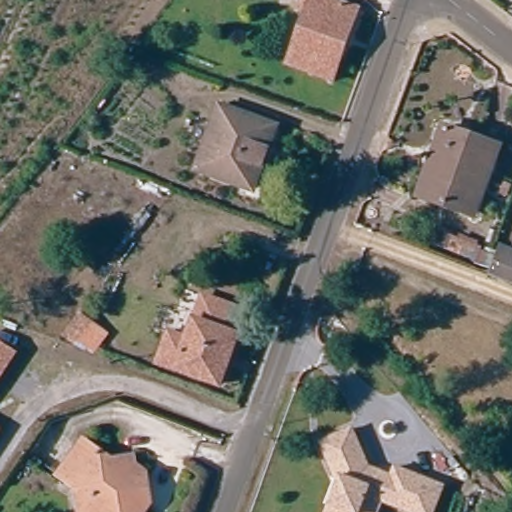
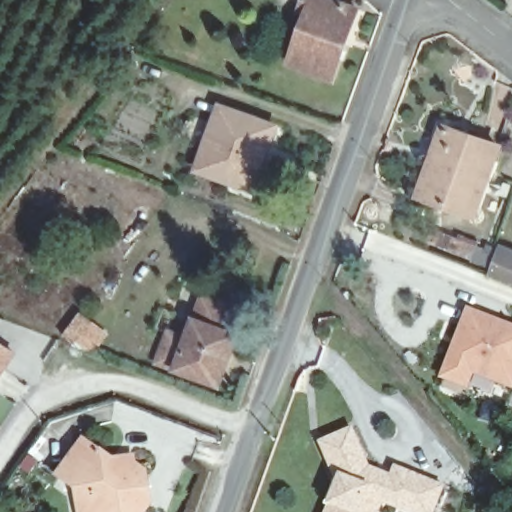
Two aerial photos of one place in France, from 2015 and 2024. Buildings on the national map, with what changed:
unchanged [(309,11),(301,8),(304,0),(329,0),(353,9),(357,10),(345,45),(330,81),(288,65),(309,11)]
unchanged [(276,126),(254,191),(197,171),(220,106),(276,126)]
unchanged [(437,160),(448,129),(502,148),(478,216),(437,201),(424,196),(437,160)]
unchanged [(455,237),(449,252),(426,244),(432,229),(455,237)]
unchanged [(488,278),(499,248),(512,253),(512,287),(488,278)]
unchanged [(206,381),(156,362),(168,332),(186,339),(203,297),(246,313),(223,371),(217,385),(206,381)]
new [(512,324),(512,389),(475,374),(469,389),(438,379),(467,307),(512,324)]
demolished [(88,321),(72,342),(61,334),(77,313),(88,321)]
unchanged [(0,341),(18,352),(0,380),(0,341)]
unchanged [(327,503),(336,481),(329,464),(318,441),(350,427),(366,465),(390,474),(393,464),(441,483),(430,512),(413,512),(380,499),(376,512),(324,512),(327,503)]
unchanged [(80,484),(60,470),(86,436),(114,454),(141,452),(144,466),(148,468),(155,497),(146,508),(143,512),(84,512),(80,484)]

